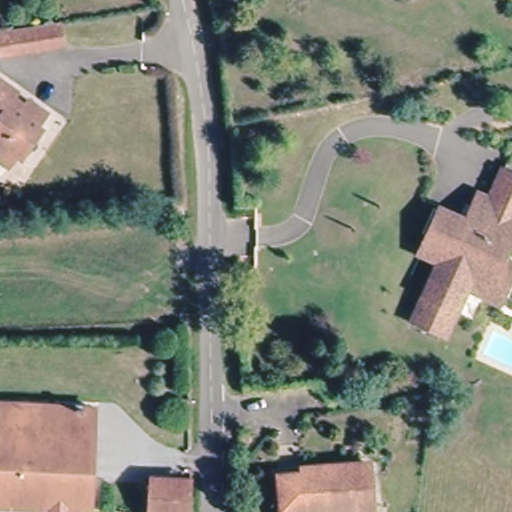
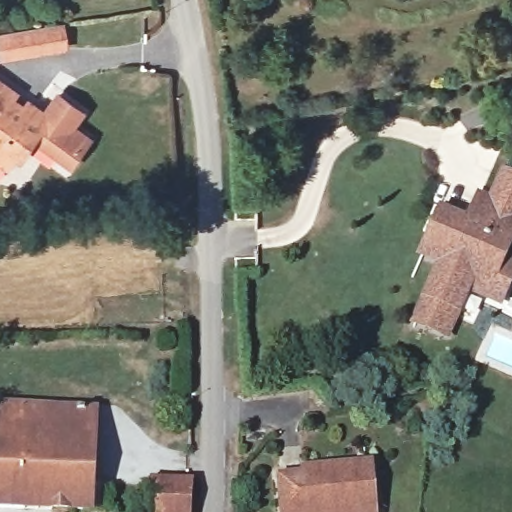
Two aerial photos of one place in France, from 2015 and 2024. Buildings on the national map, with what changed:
unchanged [(58,17),(60,44),(0,50),(0,25),(58,17)]
unchanged [(15,91),(28,100),(44,110),(47,112),(30,138),(21,152),(14,167),(0,158),(0,80),(15,91)]
new [(47,112),(44,110),(57,92),(87,111),(76,127),(95,140),(72,167),(30,138),(47,112)]
unchanged [(466,286),(440,333),(410,316),(441,262),(430,254),(421,249),(428,234),(440,215),(461,225),(472,207),(486,215),(495,200),(508,176),(512,178),(512,240),(500,261),(512,268),(512,280),(498,304),(482,295),(466,286)]
unchanged [(35,504),(19,504),(0,504),(0,399),(91,405),(85,505),(49,505),(43,504),(35,504)]
unchanged [(296,471),(296,463),(365,458),(370,506),(300,510),(300,512),(275,512),(271,473),(296,471)]
unchanged [(146,512),(141,511),(147,476),(191,484),(191,512),(146,512)]
unchanged [(370,506),(370,512),(300,512),(300,510),(370,506)]

